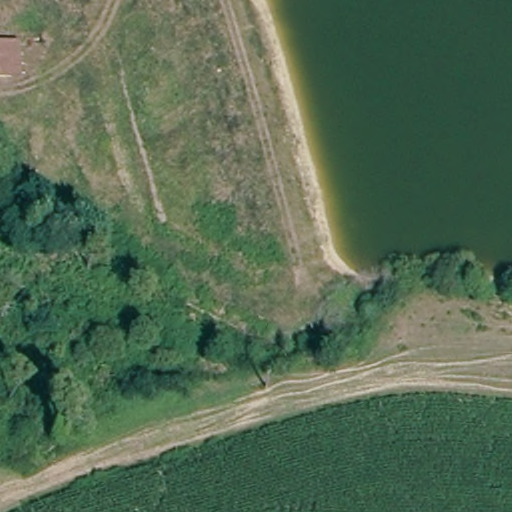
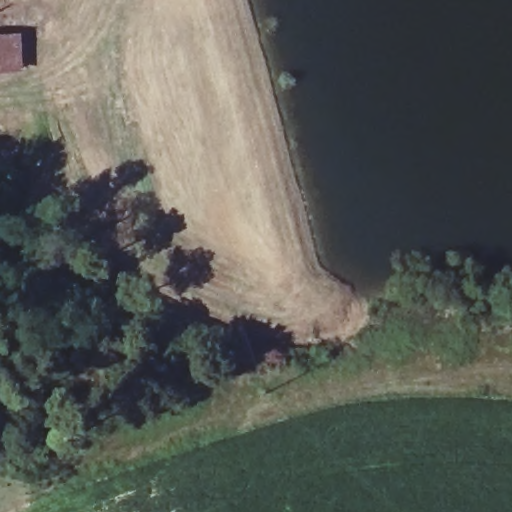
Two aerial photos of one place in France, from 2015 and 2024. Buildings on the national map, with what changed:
unchanged [(18,35),(19,71),(0,72),(0,36),(18,35)]

